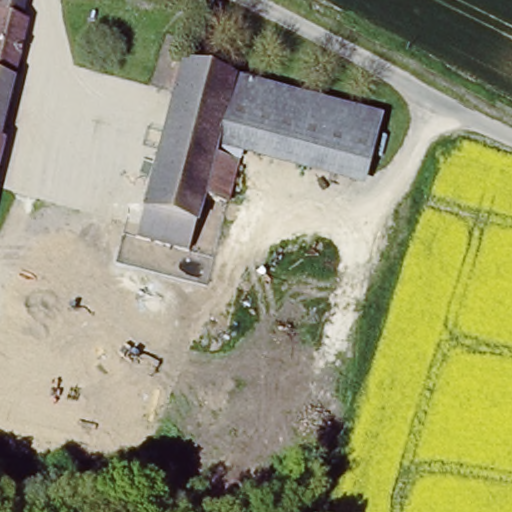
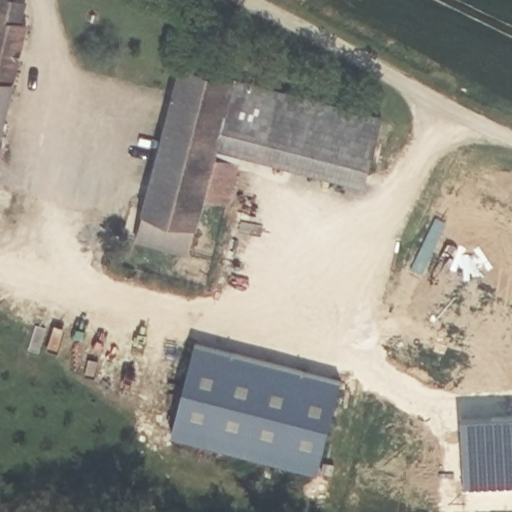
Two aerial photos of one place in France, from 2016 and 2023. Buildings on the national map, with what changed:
unchanged [(0,137),(10,139),(0,173),(0,0),(35,0),(0,137)]
unchanged [(181,64),(388,114),(369,186),(245,159),(238,207),(204,201),(193,257),(135,242),(181,64)]
new [(196,339),(341,378),(317,467),(171,428),(196,339)]

